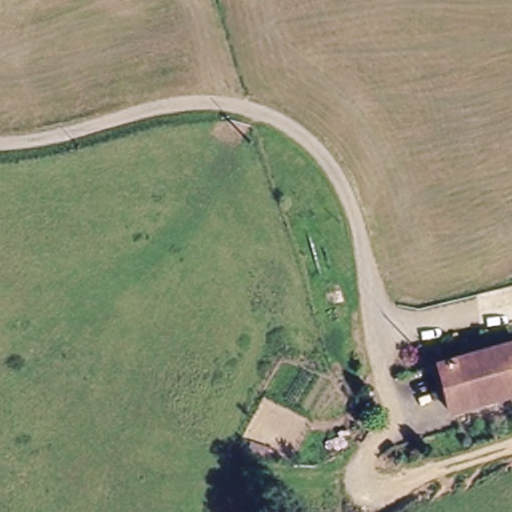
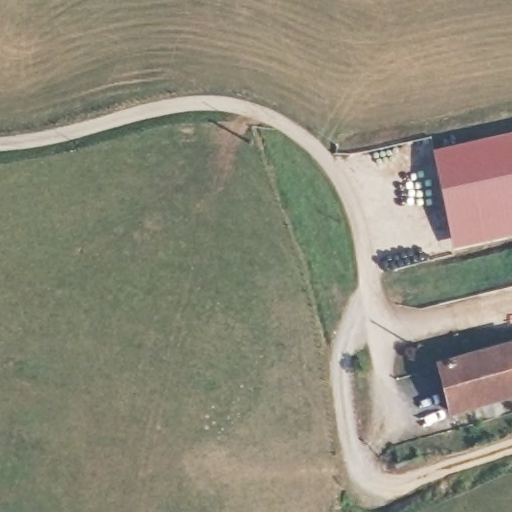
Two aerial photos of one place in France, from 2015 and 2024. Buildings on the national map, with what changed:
new [(512,135),(512,236),(453,249),(432,153),(512,135)]
unchanged [(431,360),(466,351),(501,343),(512,341),(512,389),(436,408),(431,360)]

